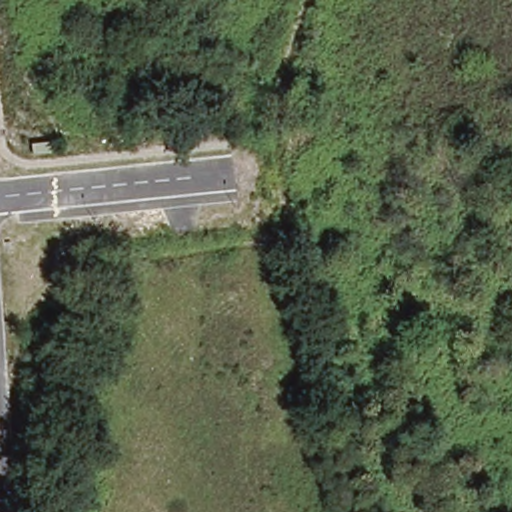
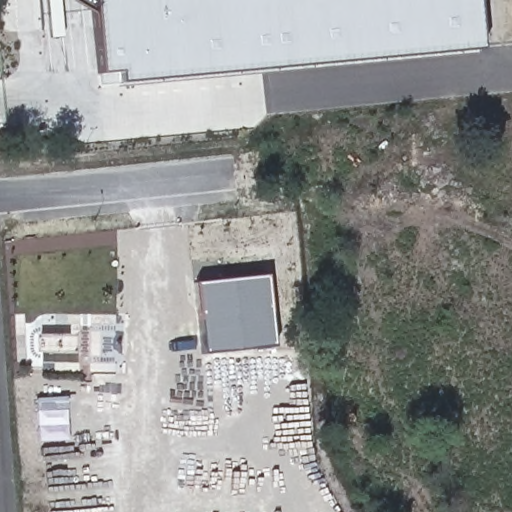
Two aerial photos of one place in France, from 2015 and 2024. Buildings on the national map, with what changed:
new [(120,71),(99,74),(94,15),(69,0),(476,0),(479,48),(121,80),(120,71)]
new [(265,275),(272,345),(202,354),(194,283),(265,275)]

